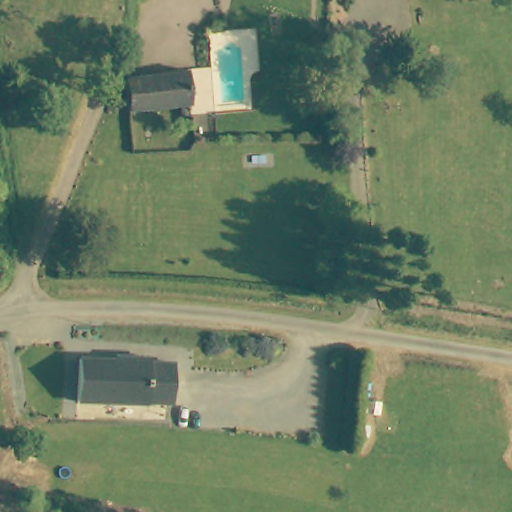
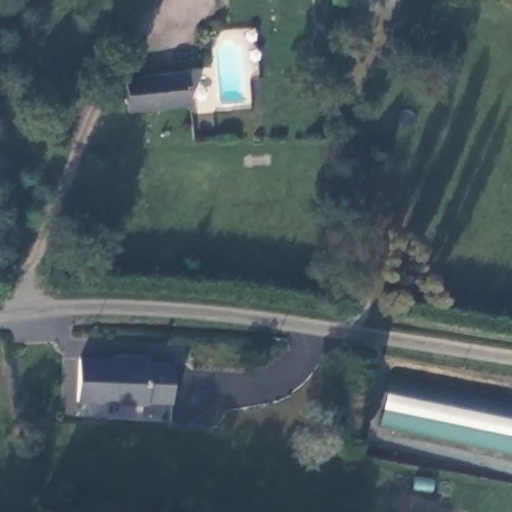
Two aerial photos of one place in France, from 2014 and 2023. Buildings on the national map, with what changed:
unchanged [(190,74),(193,107),(128,112),(127,80),(190,74)]
unchanged [(125,357),(131,352),(152,353),(155,360),(177,362),(175,400),(79,399),(81,355),(125,357)]
new [(392,377),(512,401),(512,452),(382,427),(392,377)]

